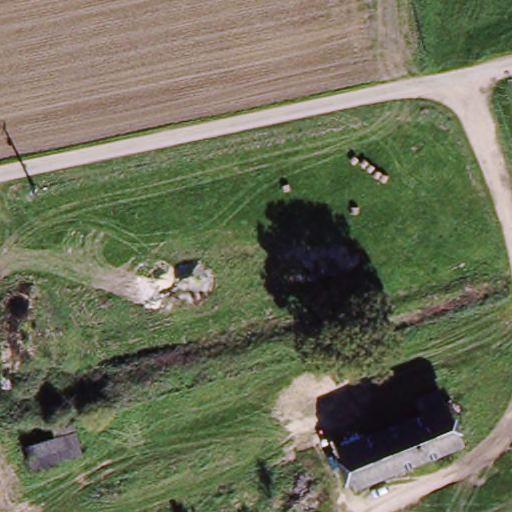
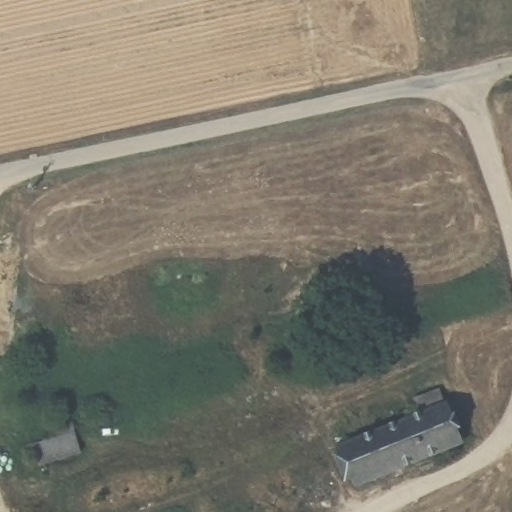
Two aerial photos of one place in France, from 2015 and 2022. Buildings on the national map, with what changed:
unchanged [(366,478),(352,442),(420,416),(413,396),(439,386),(447,406),(461,442),(366,478)]
unchanged [(70,415),(83,449),(10,474),(3,452),(55,434),(50,422),(70,415)]

